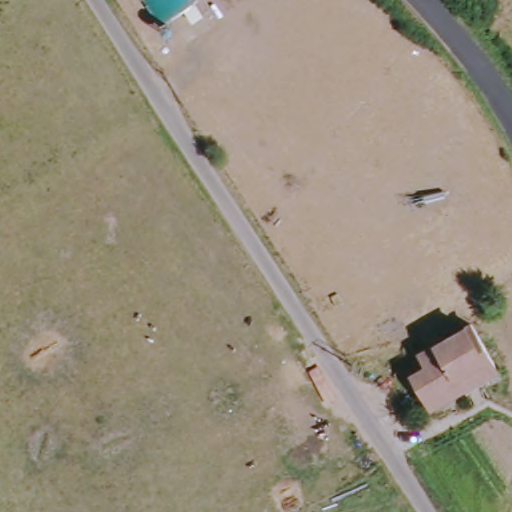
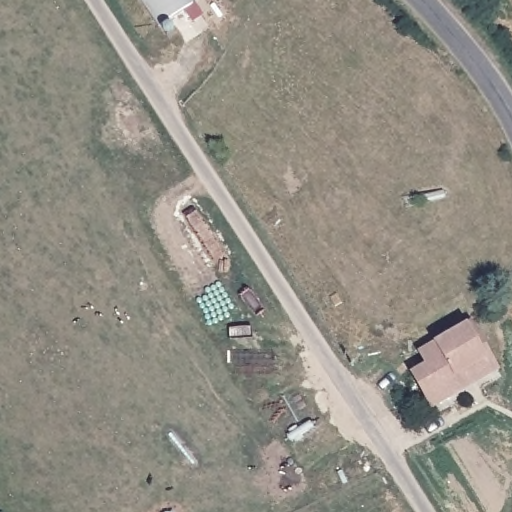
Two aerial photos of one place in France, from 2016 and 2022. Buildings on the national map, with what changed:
unchanged [(206,3),(166,30),(146,0),(203,0),(206,3)]
unchanged [(435,412),(419,379),(433,370),(425,357),(476,328),(500,375),(435,412)]

